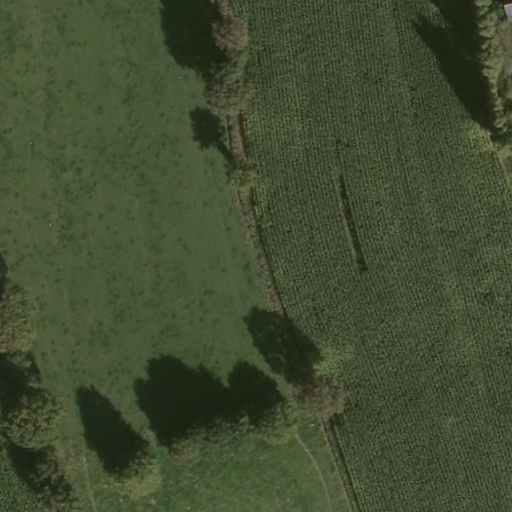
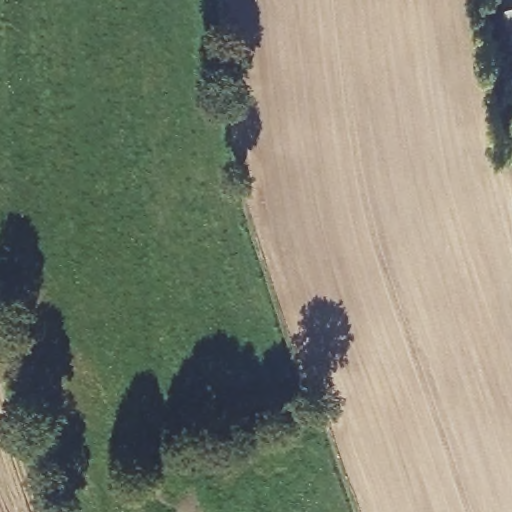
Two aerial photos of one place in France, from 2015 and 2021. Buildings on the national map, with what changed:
unchanged [(491,0),(512,0),(512,19),(496,23),(491,0)]

